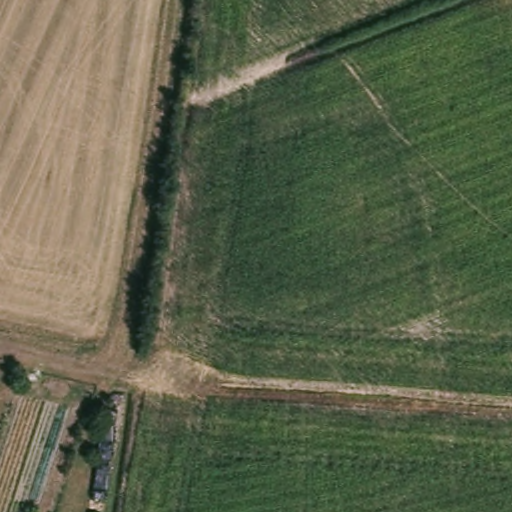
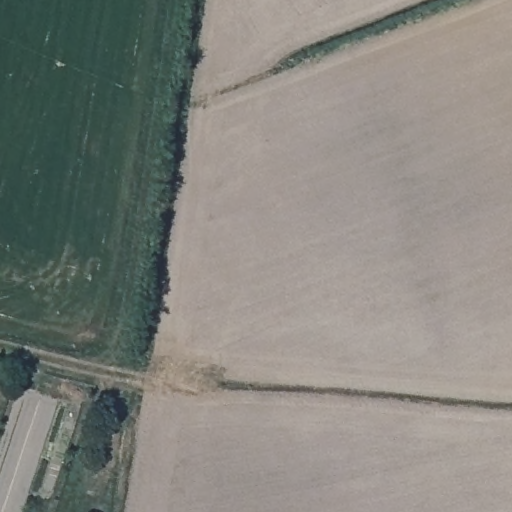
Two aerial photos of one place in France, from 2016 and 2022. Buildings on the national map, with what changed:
[]

